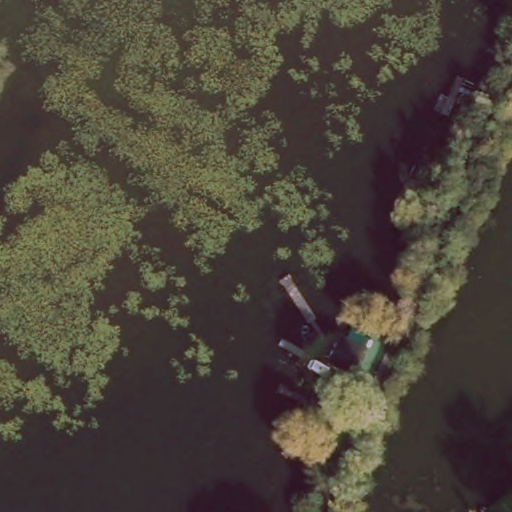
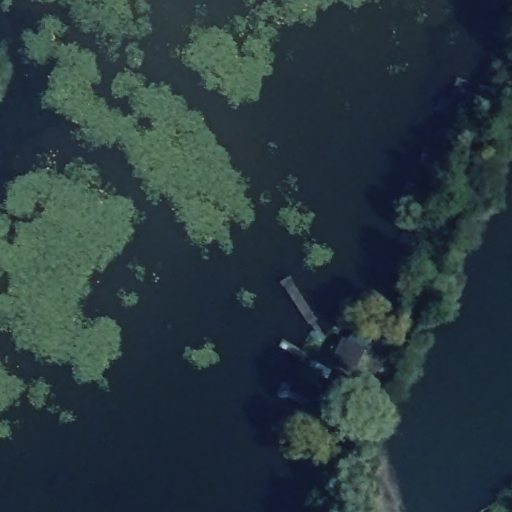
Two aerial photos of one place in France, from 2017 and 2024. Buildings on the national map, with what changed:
[]

